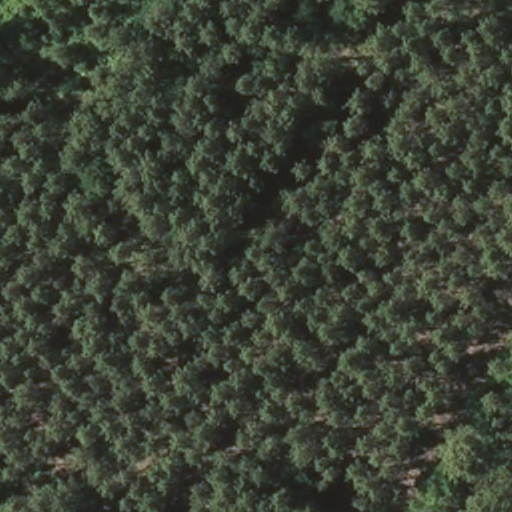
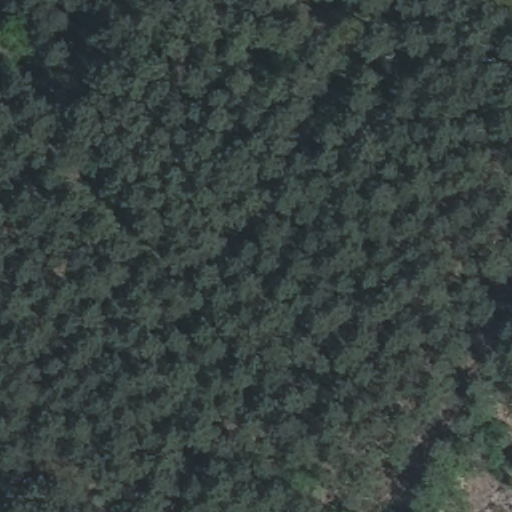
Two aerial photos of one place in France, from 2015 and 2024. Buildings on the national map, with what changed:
[]

